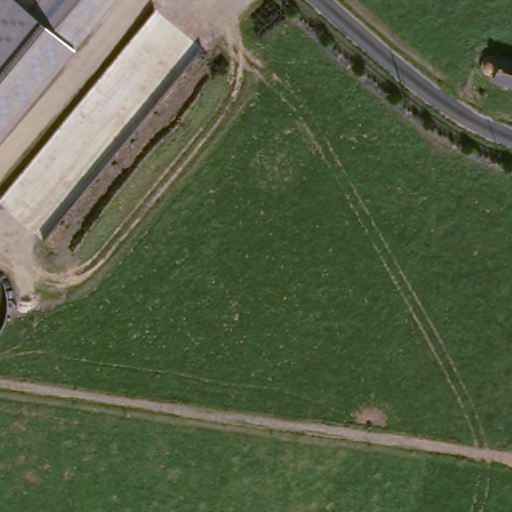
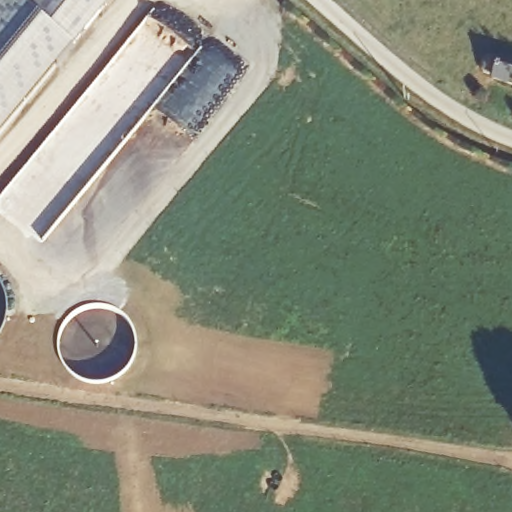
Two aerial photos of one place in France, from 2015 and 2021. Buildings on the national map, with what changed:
unchanged [(0,0),(110,0),(0,134),(0,0)]
unchanged [(481,60),(483,58),(484,57),(487,57),(497,60),(498,55),(512,60),(512,87),(490,79),(492,72),(485,70),(481,68),(480,66),(480,65),(480,62),(480,61),(481,60)]

